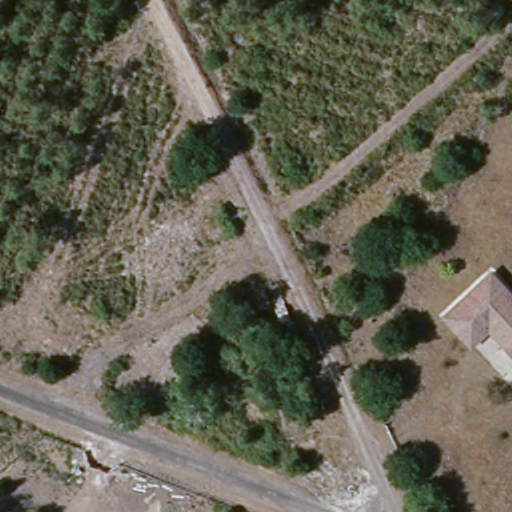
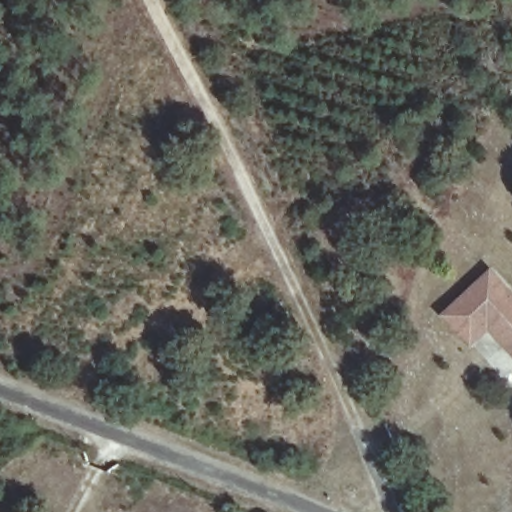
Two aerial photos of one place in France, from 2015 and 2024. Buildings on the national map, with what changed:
unchanged [(445,317),(491,274),(512,297),(512,302),(467,343),(445,317)]
unchanged [(470,347),(467,343),(512,302),(512,356),(489,330),(470,347)]

